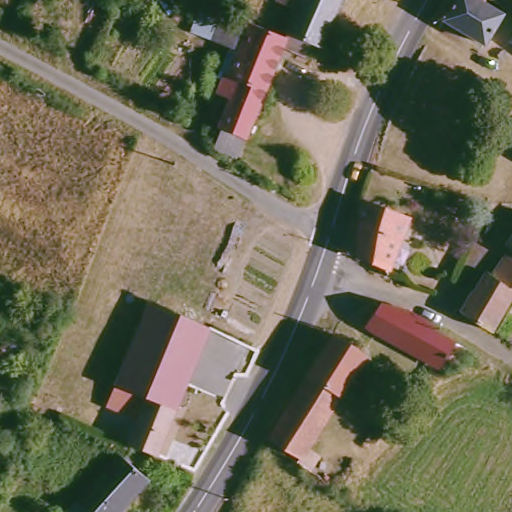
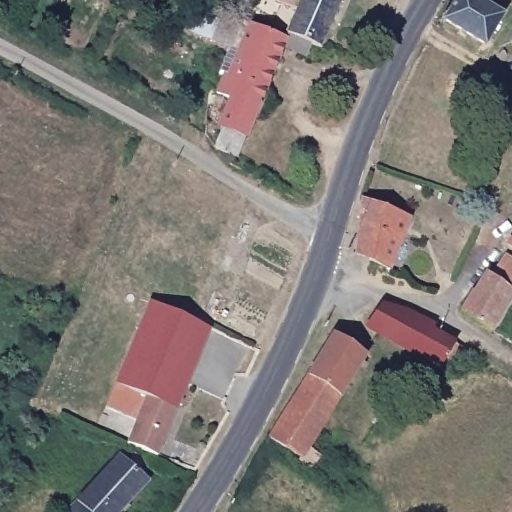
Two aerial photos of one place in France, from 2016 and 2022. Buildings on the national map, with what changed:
unchanged [(314,41),(291,33),(303,5),(294,0),(345,0),(325,45),(314,41)]
unchanged [(494,0),(510,10),(492,42),(482,36),(449,18),(459,0),(494,0)]
unchanged [(288,39),(291,33),(314,41),(305,55),(287,49),(240,159),(220,149),(226,130),(223,127),(241,83),(230,78),(242,49),(219,38),(229,18),(230,14),(253,24),(288,39)]
unchanged [(512,40),(512,44),(510,43),(512,40)]
unchanged [(415,220),(395,269),(360,254),(367,200),(415,220)]
unchanged [(512,245),(512,248),(510,247),(512,245)]
unchanged [(492,273),(505,254),(512,258),(512,306),(494,332),(464,313),(492,273)]
unchanged [(212,331),(160,457),(132,444),(130,443),(147,401),(120,388),(154,301),(202,325),(212,331)]
unchanged [(394,310),(407,315),(465,353),(454,370),(443,364),(437,373),(367,330),(380,308),(394,310)]
unchanged [(339,332),(372,353),(314,445),(325,454),(316,468),(272,437),(339,332)]
unchanged [(195,476),(175,465),(187,445),(207,456),(195,476)]
unchanged [(130,458),(137,453),(152,468),(147,476),(150,480),(120,512),(90,512),(79,503),(124,453),(130,458)]
unchanged [(79,503),(90,512),(70,512),(79,503)]

